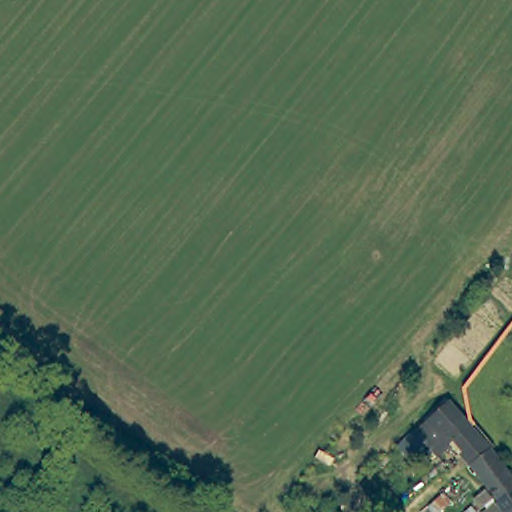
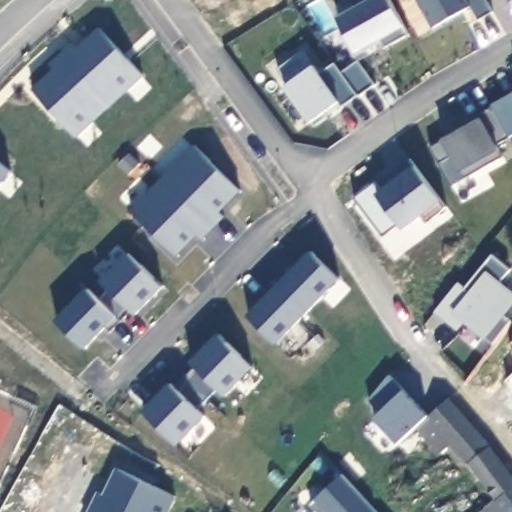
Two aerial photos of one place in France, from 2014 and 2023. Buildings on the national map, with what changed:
new [(382,53),(378,45),(352,58),(339,36),(326,43),(301,0),(329,0),(339,17),(368,0),(395,0),(414,37),(382,53)]
new [(479,20),(471,6),(433,28),(416,0),(484,0),(492,12),(479,20)]
new [(60,54),(72,44),(76,49),(99,29),(141,76),(108,107),(60,54)]
new [(357,97),(315,127),(309,123),(284,87),(275,71),(302,51),(313,66),(320,75),(334,64),(357,97)]
new [(74,137),(31,91),(53,70),(49,65),(60,54),(108,107),(74,137)]
new [(491,105),(512,93),(512,136),(509,138),(491,105)]
new [(509,138),(495,146),(501,158),(463,180),(451,157),(438,164),(428,148),(465,128),(463,124),(492,107),(509,138)]
new [(161,179),(193,147),(239,190),(218,212),(223,217),(212,228),(161,179)]
new [(445,208),(425,223),(419,216),(402,229),(399,225),(382,238),(352,199),(373,183),(381,192),(387,187),(382,180),(408,159),(445,208)]
new [(0,184),(0,164),(10,171),(0,184)]
new [(212,228),(200,239),(196,235),(175,256),(130,211),(161,179),(212,228)]
new [(284,268),(289,273),(310,252),(338,280),(306,312),(273,279),(284,268)]
new [(97,299),(108,289),(100,282),(128,253),(161,286),(134,314),(131,311),(120,322),(97,299)]
new [(457,284),(464,288),(492,254),(511,269),(499,283),(512,294),(512,304),(503,315),(512,321),(494,345),(466,325),(461,332),(435,311),(457,284)]
new [(306,312),(275,344),(247,317),(268,296),(262,290),(273,279),(306,312)]
new [(110,333),(104,327),(83,348),(56,321),(87,289),(120,322),(110,333)]
new [(194,367),(191,364),(211,342),(245,376),(224,397),(216,389),(207,399),(184,378),(194,367)]
new [(398,444),(374,420),(380,414),(368,401),(389,375),(428,417),(398,444)]
new [(207,399),(196,410),(204,417),(183,438),(150,406),(170,385),(173,388),(184,378),(207,399)]
unchanged [(512,473),(512,512),(506,512),(495,498),(499,495),(472,462),(467,459),(427,412),(435,405),(445,397),(453,405),(486,446),(488,444),(512,473)]
new [(337,462),(348,452),(366,472),(355,482),(337,462)]
new [(310,504),(342,475),(376,511),(375,512),(316,512),(310,504)]
unchanged [(495,498),(506,512),(479,512),(495,498)]

